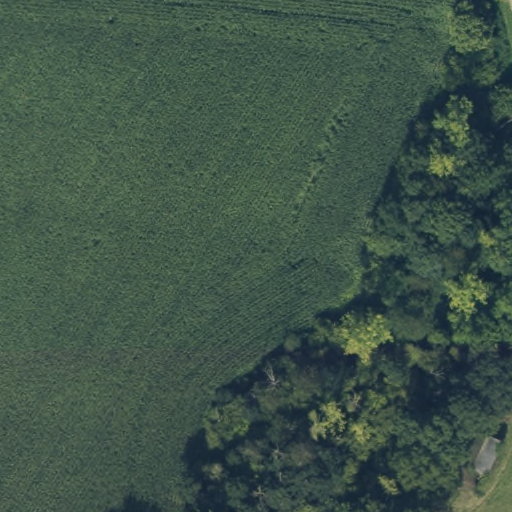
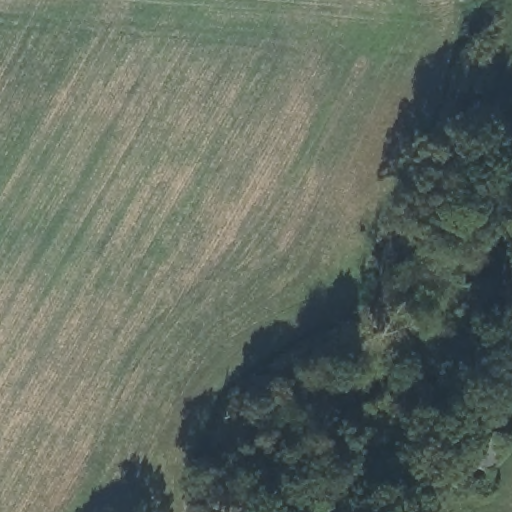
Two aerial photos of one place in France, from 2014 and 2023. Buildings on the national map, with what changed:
unchanged [(491,490),(462,477),(481,432),(509,442),(491,490)]

